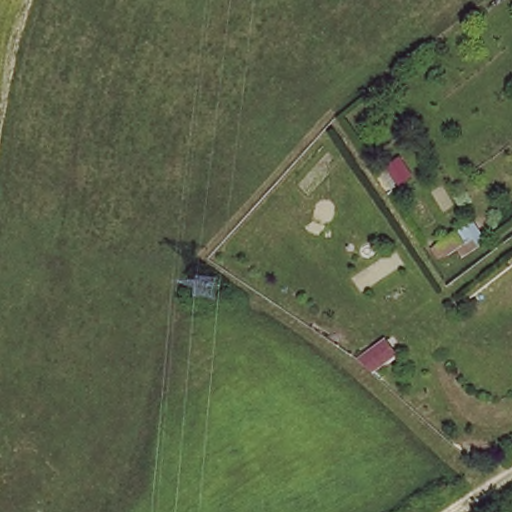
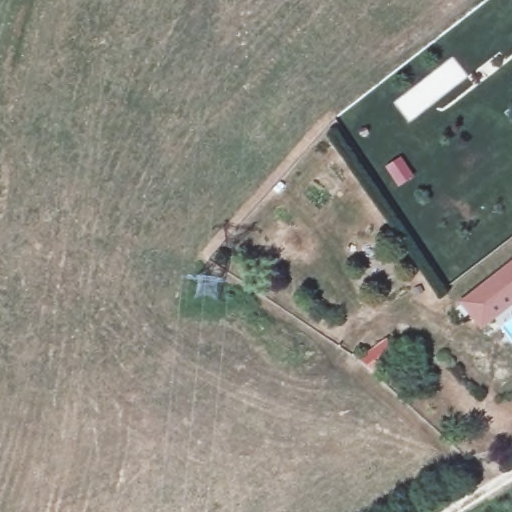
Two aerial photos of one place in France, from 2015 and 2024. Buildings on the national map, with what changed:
demolished [(393,139),(405,154),(394,161),(382,145),(393,139)]
demolished [(449,211),(460,225),(443,235),(433,221),(449,211)]
new [(512,305),(481,330),(460,303),(512,261),(512,305)]

